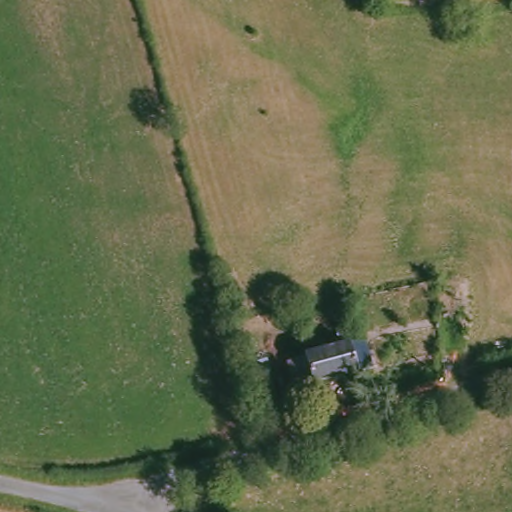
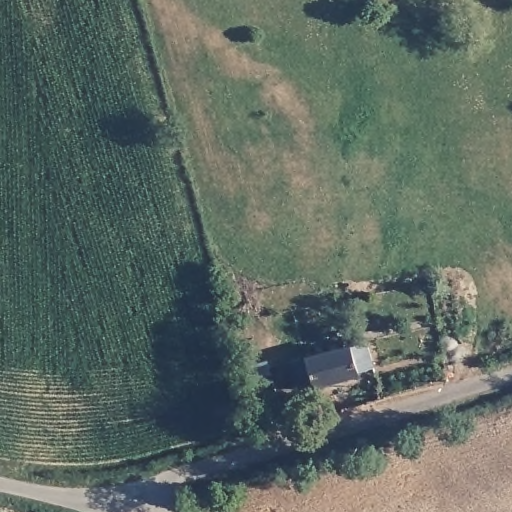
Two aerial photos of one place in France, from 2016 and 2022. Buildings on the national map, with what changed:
unchanged [(371,366),(293,388),(286,361),(363,339),(371,366)]
unchanged [(289,423),(271,429),(257,388),(274,382),(289,423)]

